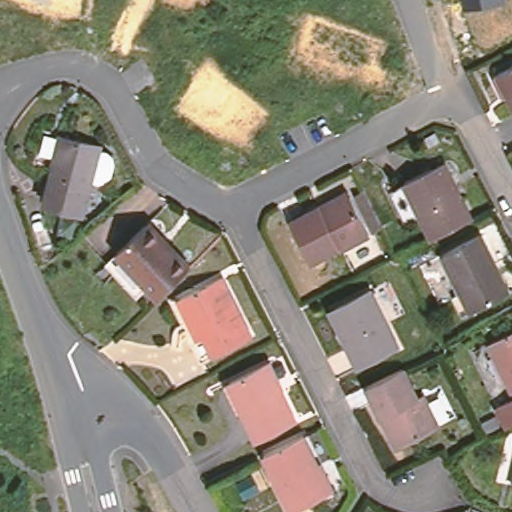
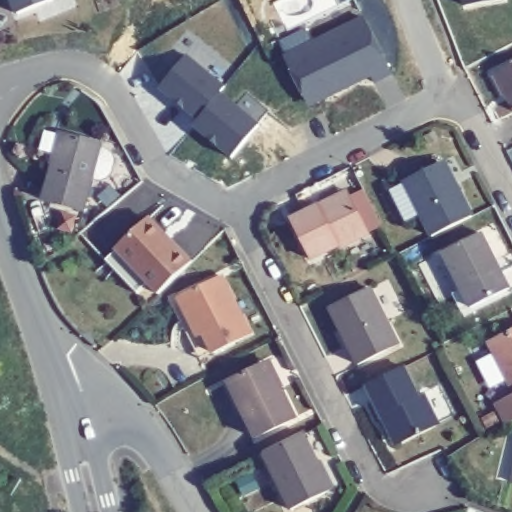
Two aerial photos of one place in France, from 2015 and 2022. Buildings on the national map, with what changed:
new [(16,16),(10,0),(53,0),(16,16)]
unchanged [(503,2),(463,9),(462,0),(503,0),(503,2)]
new [(365,20),(392,75),(374,84),(370,78),(338,94),(336,90),(326,94),(324,101),(313,107),(307,104),(285,60),(365,20)]
unchanged [(487,68),(512,56),(512,104),(505,107),(487,68)]
new [(187,58),(227,90),(222,96),(200,123),(160,91),(187,58)]
new [(200,123),(222,96),(260,128),(233,160),(195,129),(200,123)]
unchanged [(47,161),(56,133),(60,135),(97,145),(77,212),(39,201),(50,162),(47,161)]
unchanged [(400,175),(436,156),(440,154),(452,175),(469,209),(427,229),(400,175)]
unchanged [(333,242),(303,255),(285,216),(315,202),(342,189),(344,193),(362,231),(334,244),(333,242)]
unchanged [(112,251),(122,242),(150,214),(154,211),(175,234),(195,256),(163,286),(153,276),(143,286),(112,251)]
unchanged [(470,232),(498,286),(462,304),(434,250),(470,232)]
unchanged [(167,294),(172,291),(217,269),(247,327),(210,345),(195,352),(167,294)]
unchanged [(341,329),(327,303),(332,300),(367,282),(396,340),(357,360),(341,329)]
unchanged [(508,392),(478,335),(512,317),(512,390),(508,392)]
unchanged [(255,358),(260,355),(272,378),(288,412),(248,432),(220,375),(255,358)]
unchanged [(377,410),(362,379),(399,360),(412,389),(420,386),(434,418),(396,436),(390,439),(377,410)]
unchanged [(497,424),(487,403),(508,392),(512,390),(512,417),(497,424)]
unchanged [(331,484),(323,488),(287,505),(260,450),(299,429),(315,459),(318,458),(331,484)]
unchanged [(509,482),(512,466),(512,483),(509,482)]

